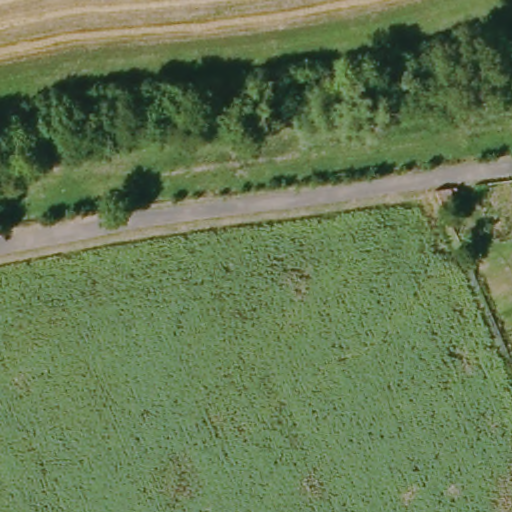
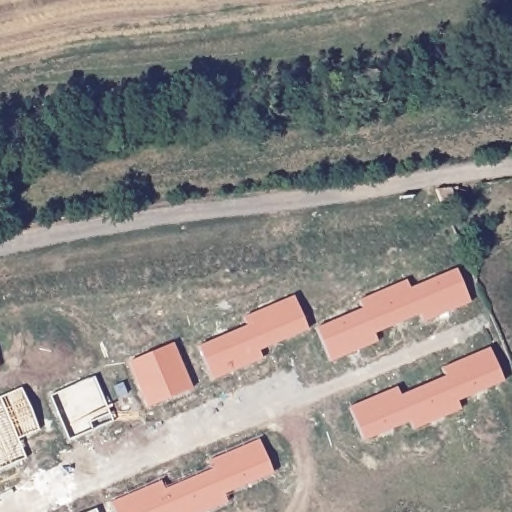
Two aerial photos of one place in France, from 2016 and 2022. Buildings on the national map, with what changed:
new [(450,188),(455,200),(450,204),(442,205),(435,190),(450,188)]
new [(472,302),(426,322),(422,314),(377,334),(380,341),(330,364),(315,328),(363,308),(360,299),(407,279),(410,289),(457,268),(472,302)]
new [(310,329),(262,350),(265,357),(213,380),(200,346),(247,326),(243,318),(293,294),(310,329)]
new [(194,389),(147,409),(127,363),(174,342),(194,389)]
new [(459,401),(463,409),(417,429),(413,422),(363,442),(350,406),(398,385),(402,395),(445,376),(440,368),(490,347),(507,383),(459,401)]
new [(92,431),(68,441),(49,397),(93,378),(109,415),(113,422),(92,431)]
new [(38,431),(17,440),(25,459),(0,470),(0,398),(21,389),(38,431)]
new [(227,495),(229,503),(210,512),(116,512),(112,501),(161,481),(166,490),(213,470),(209,460),(260,440),(275,472),(227,495)]
new [(96,512),(91,512),(95,510),(96,512)]

